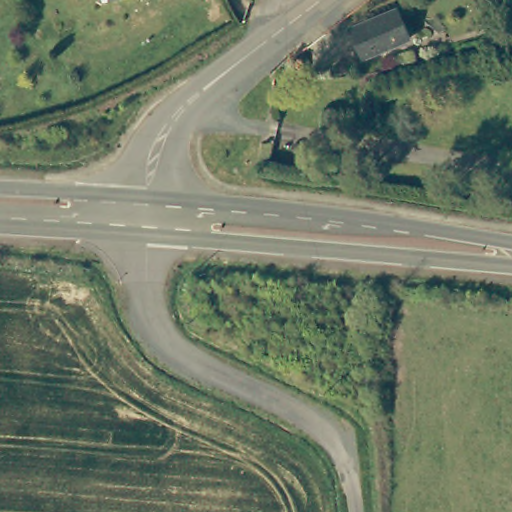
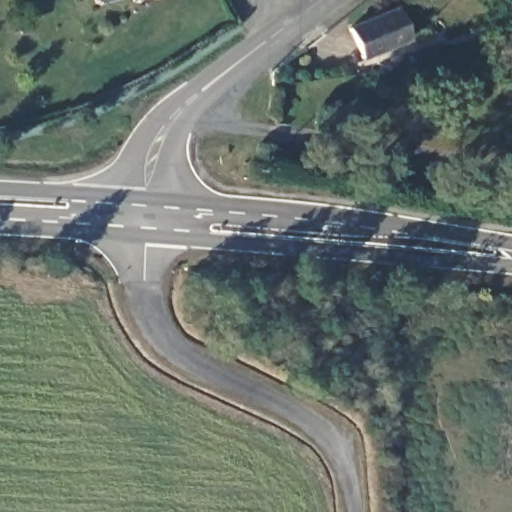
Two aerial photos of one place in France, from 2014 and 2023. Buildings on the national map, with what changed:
unchanged [(399,9),(411,39),(359,61),(346,31),(399,9)]

